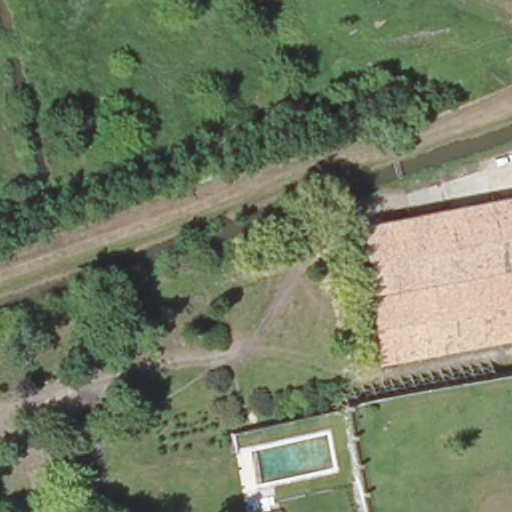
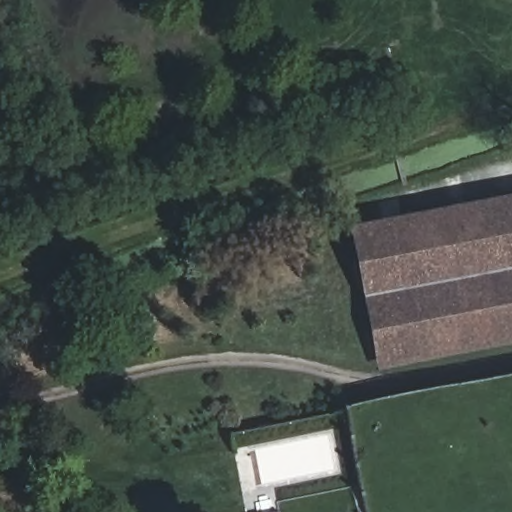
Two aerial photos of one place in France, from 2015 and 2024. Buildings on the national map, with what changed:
unchanged [(512,199),(512,335),(388,363),(357,234),(512,199)]

